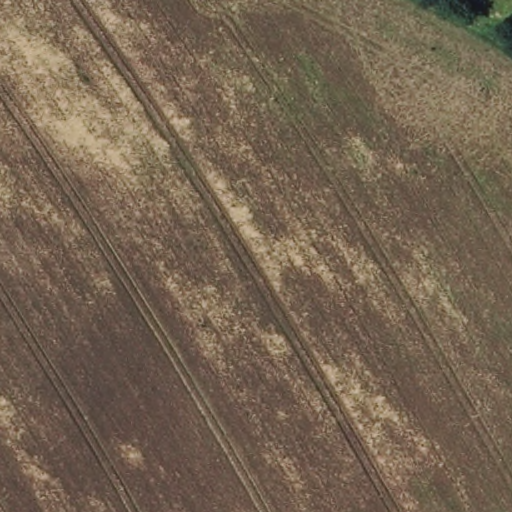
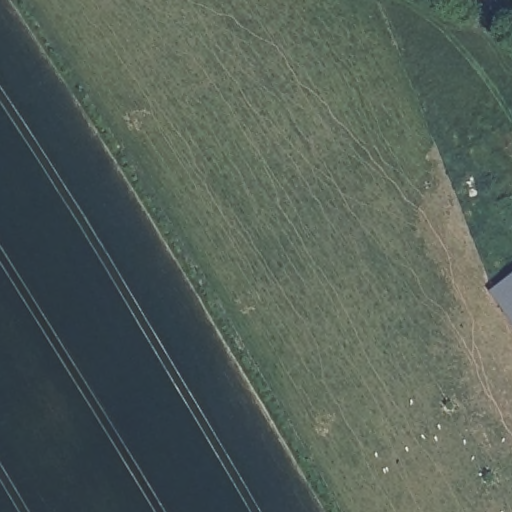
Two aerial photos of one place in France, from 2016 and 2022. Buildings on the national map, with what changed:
new [(488,292),(512,274),(512,325),(488,292)]

